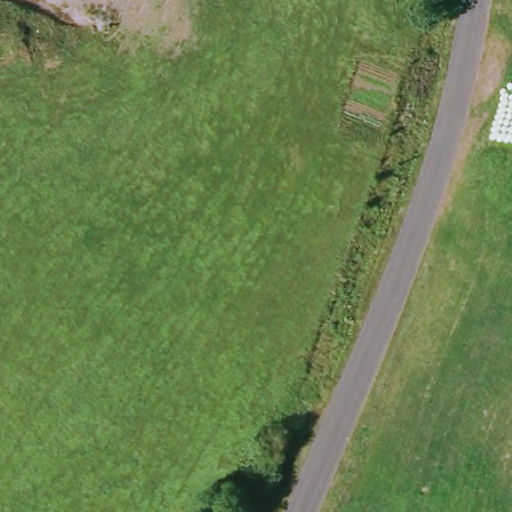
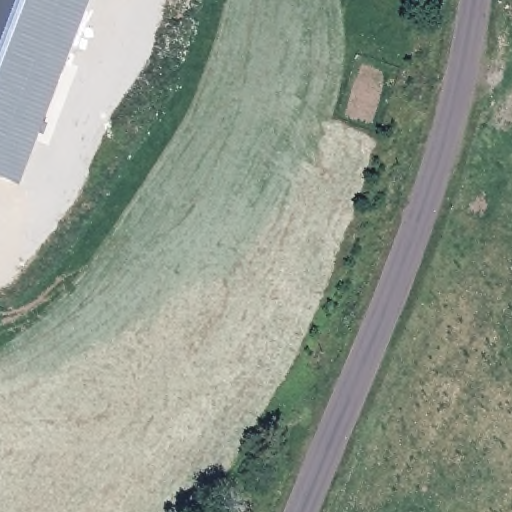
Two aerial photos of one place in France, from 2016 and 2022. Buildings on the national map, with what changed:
new [(19,186),(0,175),(0,0),(87,0),(19,186)]

